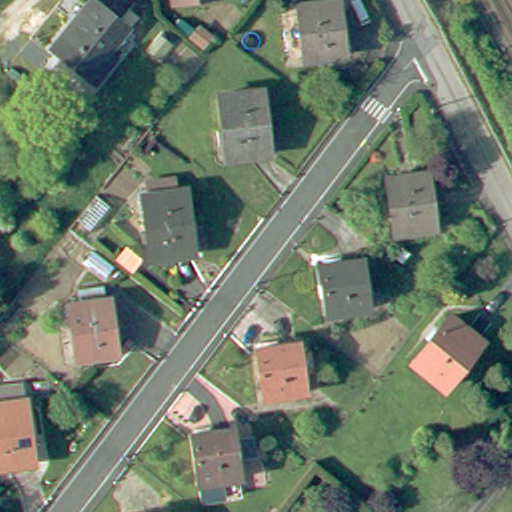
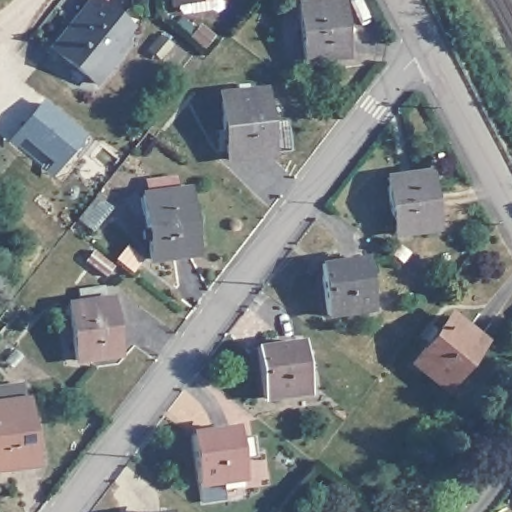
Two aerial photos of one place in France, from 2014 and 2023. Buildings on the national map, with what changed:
unchanged [(92,75),(57,49),(97,0),(99,0),(131,25),(112,49),(123,57),(101,84),(92,75)]
unchanged [(342,5),(348,60),(308,65),(302,9),(342,5)]
unchanged [(262,86),(269,150),(226,155),(218,90),(262,86)]
new [(85,136),(52,178),(43,171),(51,162),(23,139),(15,148),(7,141),(41,99),(85,136)]
unchanged [(388,174),(430,170),(435,225),(395,227),(388,174)]
unchanged [(152,201),(150,187),(175,186),(177,198),(187,196),(195,259),(153,264),(145,201),(152,201)]
unchanged [(322,263),(363,257),(368,306),(328,312),(322,263)]
unchanged [(116,276),(108,287),(88,272),(96,261),(116,276)]
unchanged [(107,295),(108,306),(83,310),(82,299),(107,295)]
unchanged [(113,310),(120,365),(80,370),(73,314),(113,310)]
unchanged [(459,315),(488,340),(452,385),(422,361),(459,315)]
unchanged [(262,348),(302,341),(308,391),(269,397),(262,348)]
unchanged [(32,386),(34,401),(37,401),(45,467),(2,473),(2,468),(0,468),(0,390),(32,386)]
unchanged [(192,433),(232,428),(239,478),(199,482),(192,433)]

